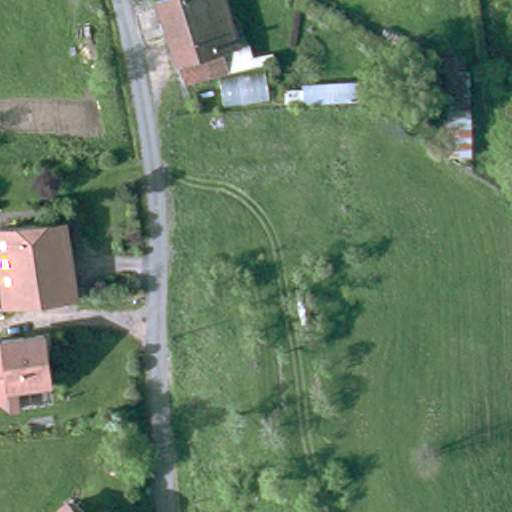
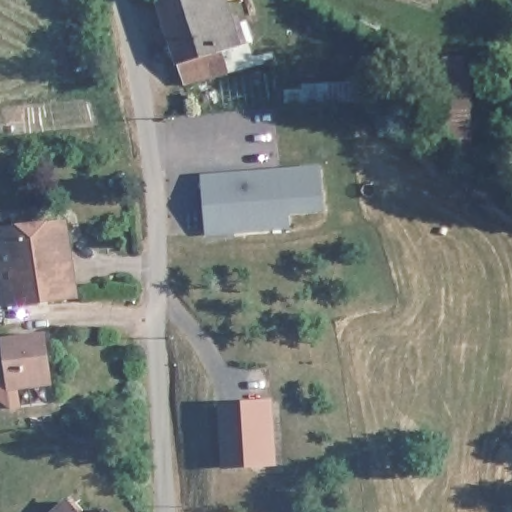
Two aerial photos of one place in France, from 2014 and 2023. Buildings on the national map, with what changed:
unchanged [(250,51),(256,72),(257,74),(215,87),(187,97),(157,12),(195,1),(197,0),(220,0),(237,55),(250,51)]
unchanged [(257,74),(266,71),(271,108),(221,118),(215,87),(257,74)]
new [(205,234),(201,174),(320,164),(323,209),(289,212),(290,227),(205,234)]
unchanged [(0,280),(0,229),(57,221),(70,298),(5,307),(0,280)]
unchanged [(0,412),(0,344),(9,343),(8,341),(51,335),(52,339),(54,353),(58,385),(53,386),(19,390),(21,410),(0,412)]
new [(264,397),(268,459),(260,460),(218,462),(213,401),(256,398),(264,397)]
unchanged [(68,512),(56,512),(61,507),(68,512)]

